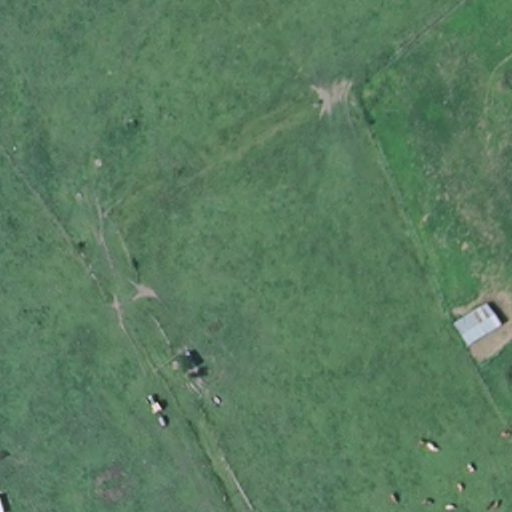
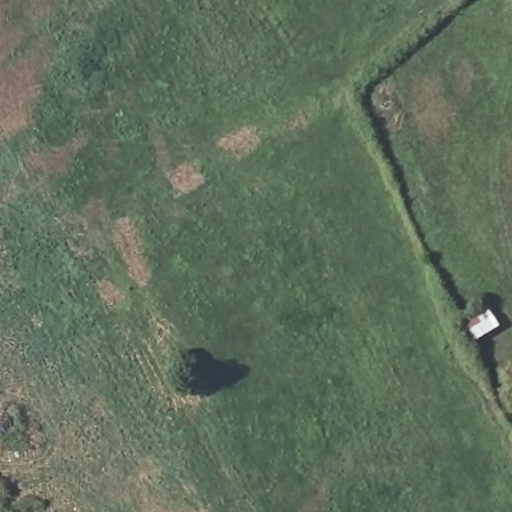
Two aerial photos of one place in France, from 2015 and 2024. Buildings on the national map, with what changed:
unchanged [(485,303),(501,333),(468,349),(451,324),(485,303)]

